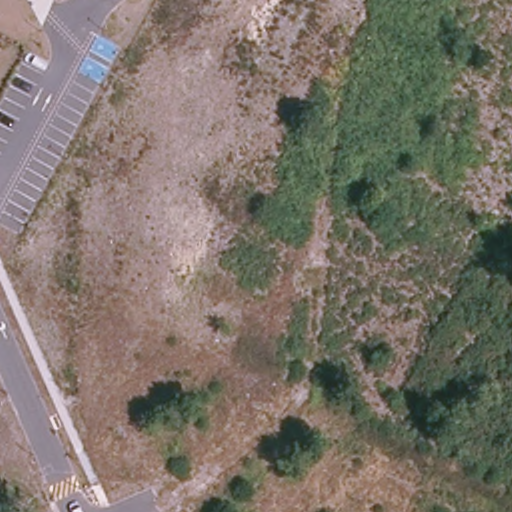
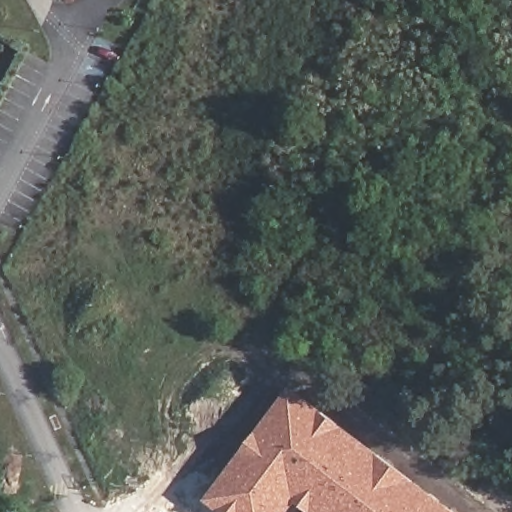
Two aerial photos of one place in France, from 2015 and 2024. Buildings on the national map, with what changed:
new [(290,391),(455,512),(308,512),(297,505),(292,512),(220,512),(207,502),(290,391)]

